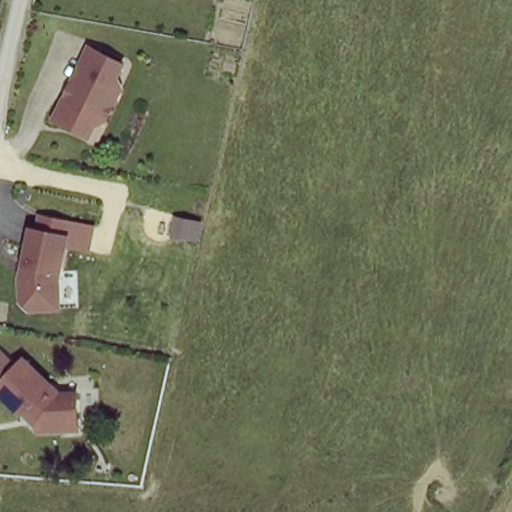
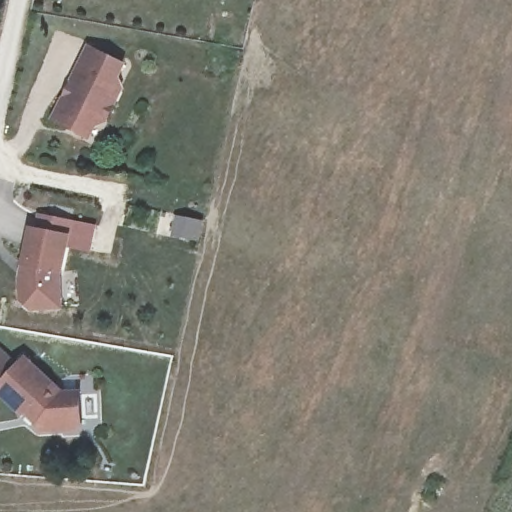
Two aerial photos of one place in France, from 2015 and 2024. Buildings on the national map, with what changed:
unchanged [(111,106),(101,123),(95,120),(85,140),(50,121),(88,49),(122,67),(111,88),(119,93),(111,106)]
unchanged [(42,214),(74,222),(61,270),(59,270),(61,306),(29,307),(22,301),(23,276),(26,273),(28,263),(25,262),(32,227),(39,228),(42,214)]
unchanged [(79,424),(60,424),(60,425),(36,425),(37,415),(23,403),(20,407),(0,388),(0,378),(24,353),(60,389),(78,389),(78,414),(79,414),(79,424)]

